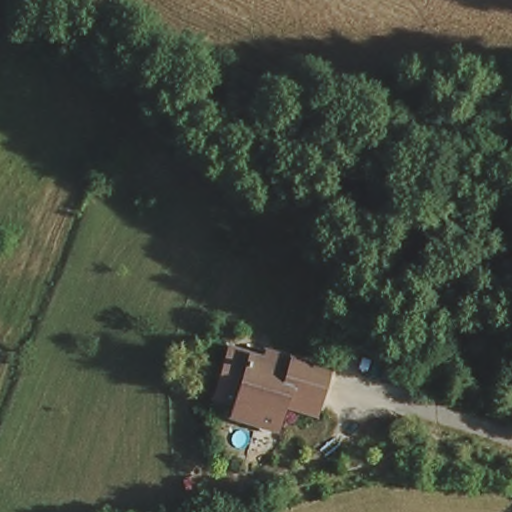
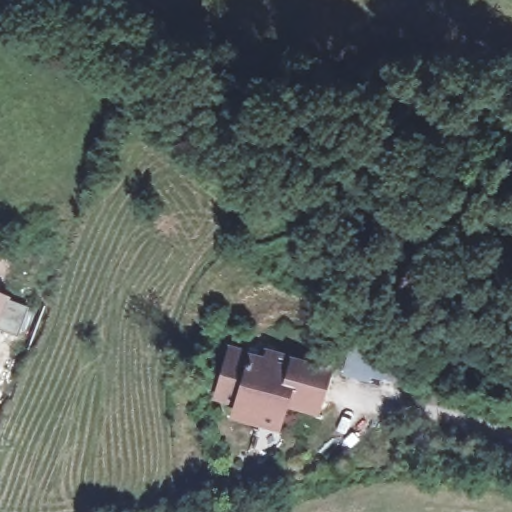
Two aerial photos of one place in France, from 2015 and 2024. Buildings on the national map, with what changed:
new [(10,301),(29,307),(17,339),(0,332),(0,294),(10,297),(10,301)]
unchanged [(295,401),(287,427),(266,421),(267,416),(247,410),(249,403),(227,398),(232,376),(240,350),(275,358),(277,351),(339,367),(330,398),(327,410),(295,401)]

